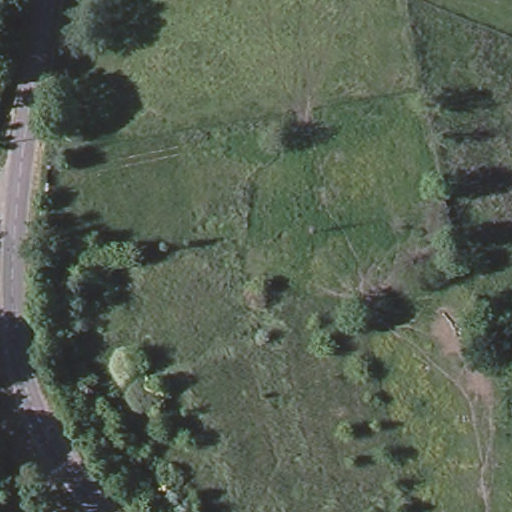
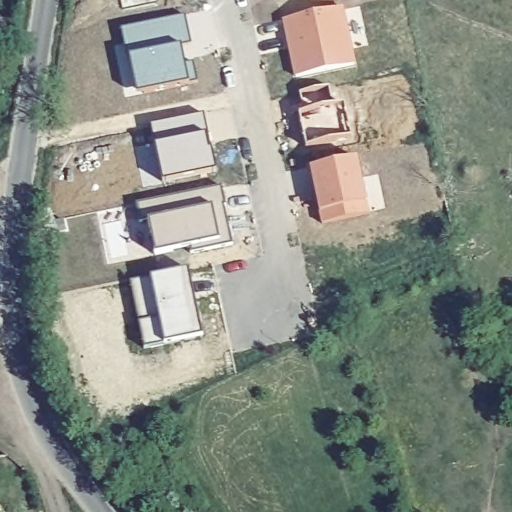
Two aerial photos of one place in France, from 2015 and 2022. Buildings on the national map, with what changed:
new [(340,5),(353,63),(295,75),(287,43),(292,42),(290,34),(286,34),(282,18),(340,5)]
new [(185,13),(192,41),(182,43),(185,61),(193,60),(197,79),(190,80),(188,78),(137,89),(122,26),(185,13)]
new [(329,85),(332,102),(345,100),(351,134),(307,143),(300,109),(305,109),(299,90),(329,85)]
new [(202,111),(215,170),(213,171),(162,182),(149,124),(200,113),(202,111)]
new [(357,154),(370,213),(322,222),(312,164),(357,154)]
new [(225,205),(223,205),(225,214),(232,244),(190,253),(188,247),(154,254),(147,220),(139,223),(135,204),(221,185),(225,205)]
new [(188,269),(199,320),(202,336),(144,349),(129,281),(184,269),(188,269)]

